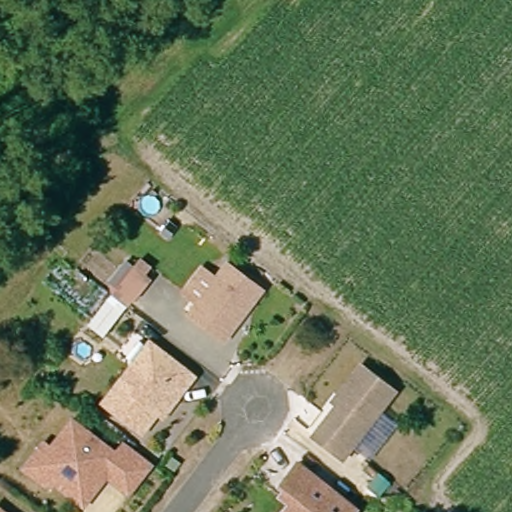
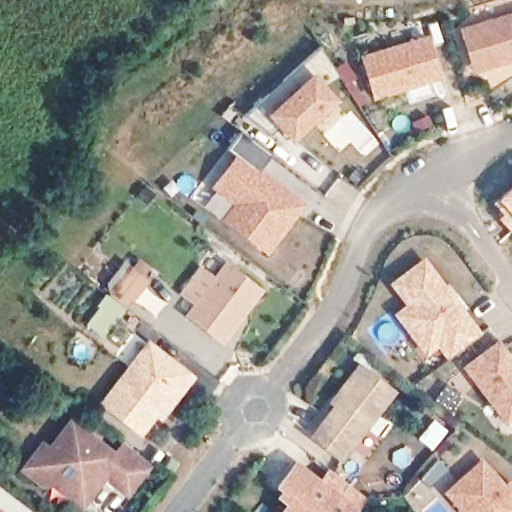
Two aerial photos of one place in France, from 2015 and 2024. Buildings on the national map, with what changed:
new [(474,73),(460,29),(512,13),(512,62),(474,73)]
new [(360,56),(428,35),(440,78),(375,98),(360,56)]
new [(246,115),(320,48),(339,75),(325,87),(337,100),(290,141),(287,138),(286,139),(275,129),(271,133),(246,115)]
new [(267,254),(224,219),(235,205),(211,187),(236,154),(228,148),(241,132),(271,154),(260,170),(305,205),(267,254)]
new [(512,182),(512,234),(496,217),(500,213),(498,210),(500,209),(492,200),(512,182)]
new [(393,314),(405,306),(388,283),(424,258),(481,333),(446,359),(437,348),(426,356),(393,314)]
unchanged [(137,304),(120,293),(142,260),(160,272),(137,304)]
unchanged [(232,264),(268,292),(230,342),(194,314),(232,264)]
unchanged [(105,343),(89,332),(114,300),(128,310),(105,343)]
new [(463,367),(499,340),(512,358),(512,420),(507,423),(463,367)]
unchanged [(162,411),(145,432),(108,402),(156,342),(199,377),(187,392),(169,416),(162,411)]
unchanged [(335,404),(340,399),(361,370),(395,396),(345,460),(316,437),(338,408),(335,404)]
unchanged [(29,475),(50,450),(56,455),(79,428),(120,463),(130,451),(150,466),(155,471),(131,500),(111,484),(104,484),(86,506),(59,483),(51,493),(29,475)]
new [(509,481),(512,484),(512,512),(461,512),(443,492),(482,459),(505,485),(509,481)]
unchanged [(284,492),(288,487),(282,482),(300,460),(357,508),(354,512),(283,512),(293,499),(284,492)]

